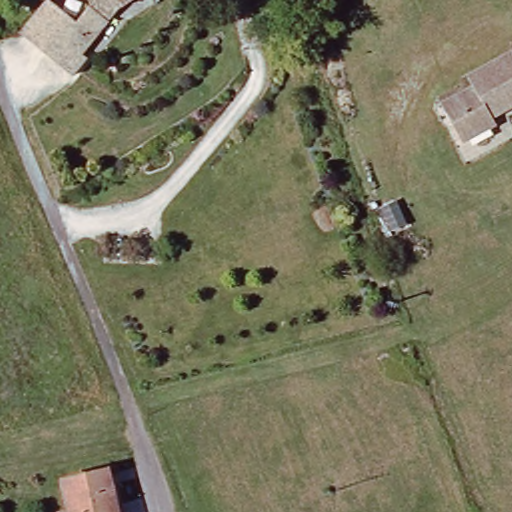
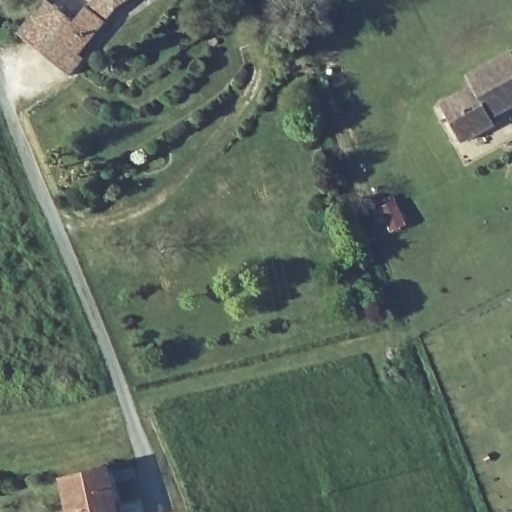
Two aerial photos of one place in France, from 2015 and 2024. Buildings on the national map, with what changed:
unchanged [(75,80),(18,36),(45,1),(76,24),(94,0),(135,0),(119,10),(82,57),(88,61),(75,80)]
unchanged [(495,119),(499,127),(464,144),(444,105),(476,88),(472,77),(512,55),(512,109),(495,119)]
unchanged [(59,482),(105,472),(114,512),(65,512),(59,482)]

